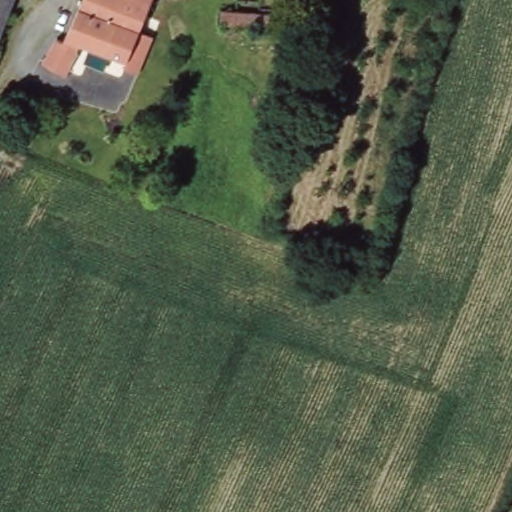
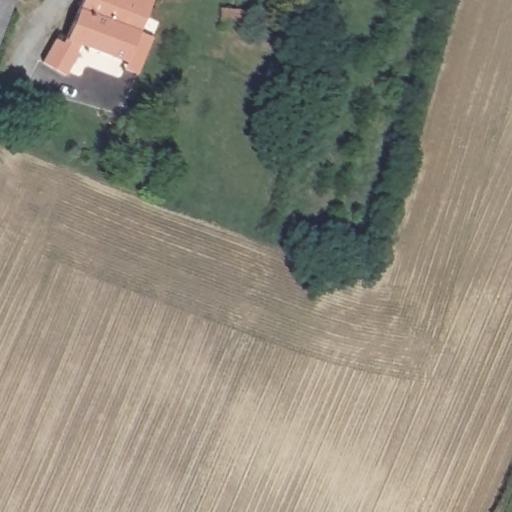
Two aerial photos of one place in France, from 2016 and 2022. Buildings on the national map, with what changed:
unchanged [(0,40),(0,0),(16,0),(0,40)]
unchanged [(151,0),(127,60),(79,40),(68,72),(46,64),(58,29),(67,32),(80,0),(150,0),(151,0)]

